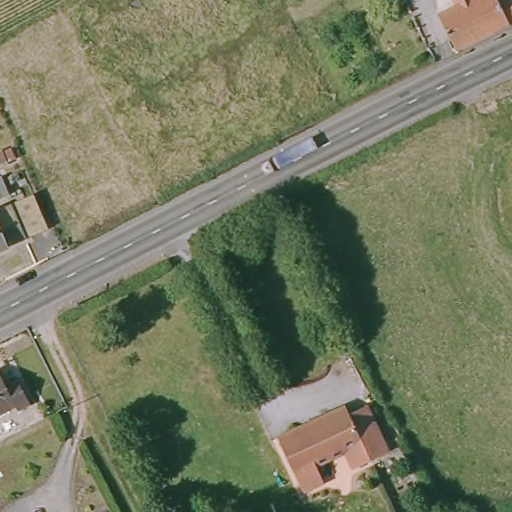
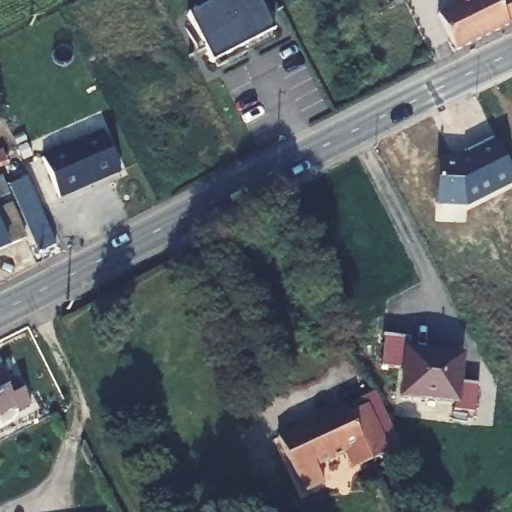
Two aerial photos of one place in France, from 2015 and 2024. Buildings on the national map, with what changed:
new [(215,69),(212,64),(210,65),(185,16),(216,0),(255,0),(272,32),(270,34),(272,39),(245,53),(215,69)]
unchanged [(437,15),(455,6),(452,0),(512,0),(512,23),(455,51),(437,15)]
unchanged [(102,133),(120,172),(100,180),(100,177),(95,180),(93,183),(59,198),(42,159),(102,133)]
new [(462,154),(493,140),(512,174),(512,185),(466,207),(436,205),(443,153),(462,154)]
unchanged [(0,164),(0,151),(2,151),(6,161),(0,164)]
unchanged [(10,194),(0,198),(0,177),(2,176),(10,194)]
unchanged [(17,202),(34,194),(49,228),(32,236),(17,202)]
unchanged [(10,205),(26,238),(0,250),(0,209),(10,205)]
new [(385,336),(410,338),(408,352),(460,357),(458,382),(476,384),(473,413),(453,410),(454,403),(402,397),(405,369),(381,367),(385,336)]
unchanged [(6,385),(18,379),(31,404),(18,411),(16,406),(0,415),(0,373),(6,385)]
unchanged [(298,433),(300,436),(313,430),(312,426),(345,411),(349,418),(367,410),(389,457),(352,474),(345,458),(316,472),(323,487),(303,497),(277,442),(298,433)]
unchanged [(428,510),(423,512),(422,512),(400,468),(406,465),(428,510)]

